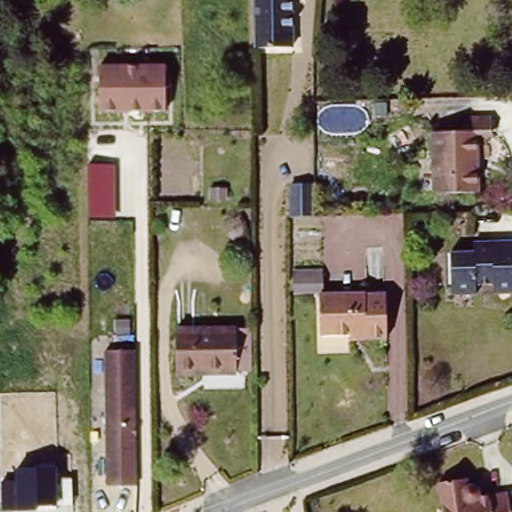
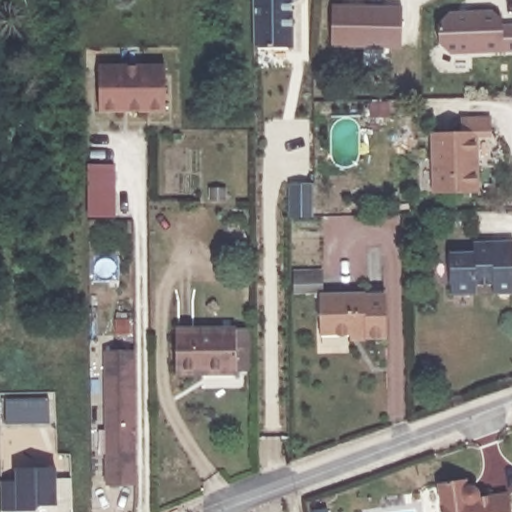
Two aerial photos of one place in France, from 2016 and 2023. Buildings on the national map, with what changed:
unchanged [(305,0),(305,2),(295,2),(296,52),(256,54),(255,1),(270,1),(269,0),(305,0)]
new [(400,48),(332,45),(333,4),(402,7),(400,48)]
new [(442,42),(440,22),(450,12),(496,10),(505,17),(505,24),(512,24),(512,49),(452,52),(442,42)]
unchanged [(165,64),(165,112),(100,111),(99,64),(165,64)]
unchanged [(477,137),(480,197),(437,199),(435,139),(477,137)]
unchanged [(115,162),(115,217),(88,216),(87,162),(115,162)]
unchanged [(312,221),(289,220),(291,186),(313,187),(312,221)]
unchanged [(510,240),(512,265),(512,291),(496,291),(495,281),(487,281),(484,241),(510,240)]
unchanged [(475,252),(475,242),(484,241),(487,281),(477,282),(478,292),(453,293),(451,253),(475,252)]
unchanged [(350,337),(320,338),(319,297),(363,295),(364,297),(385,296),(386,341),(365,342),(350,342),(350,337)]
unchanged [(238,332),(240,374),(179,375),(178,332),(238,332)]
unchanged [(135,351),(137,486),(107,486),(105,351),(135,351)]
unchanged [(18,480),(18,467),(58,467),(58,478),(72,478),(73,506),(56,506),(56,511),(29,512),(1,512),(1,481),(18,480)]
unchanged [(440,485),(467,482),(468,493),(472,497),(476,501),(508,496),(510,512),(443,512),(440,485)]

